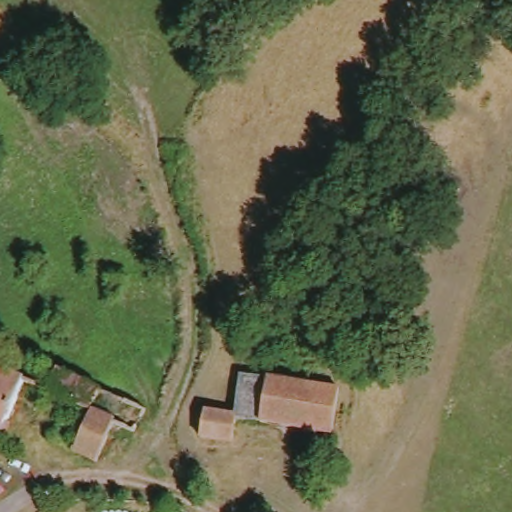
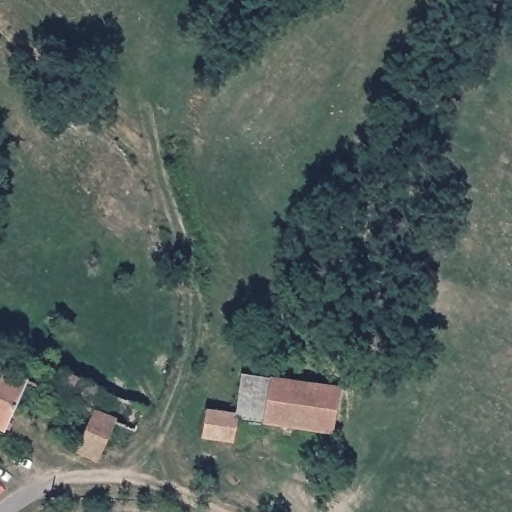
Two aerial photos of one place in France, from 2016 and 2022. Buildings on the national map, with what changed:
unchanged [(1,362),(27,374),(6,416),(0,426),(0,361),(1,362)]
unchanged [(90,407),(113,418),(92,461),(69,453),(87,411),(42,392),(53,366),(99,387),(90,407)]
unchanged [(240,372),(334,387),(328,431),(235,414),(235,409),(240,372)]
unchanged [(230,441),(196,435),(201,404),(235,409),(235,414),(230,441)]

